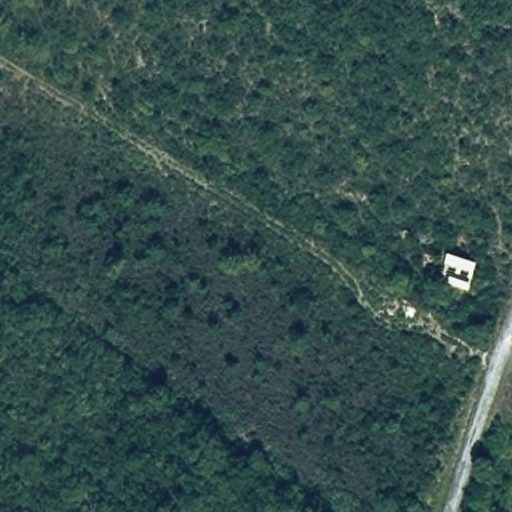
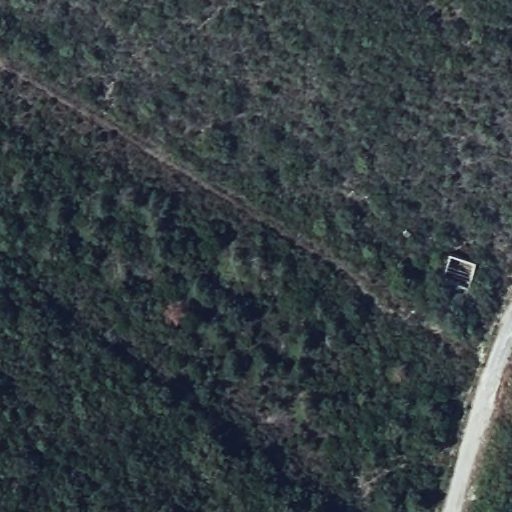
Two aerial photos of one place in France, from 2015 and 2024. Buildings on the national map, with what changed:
unchanged [(442,279),(448,249),(477,256),(471,289),(442,279)]

